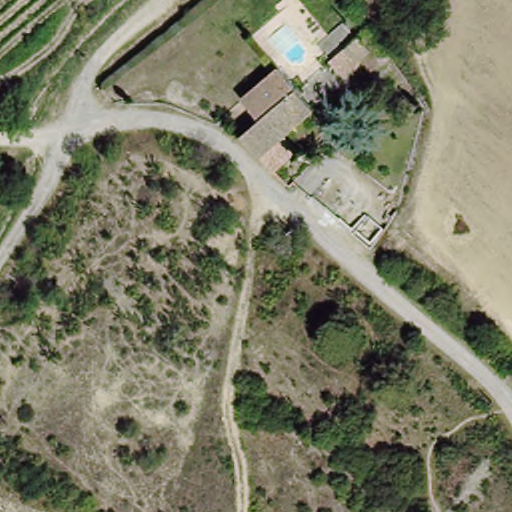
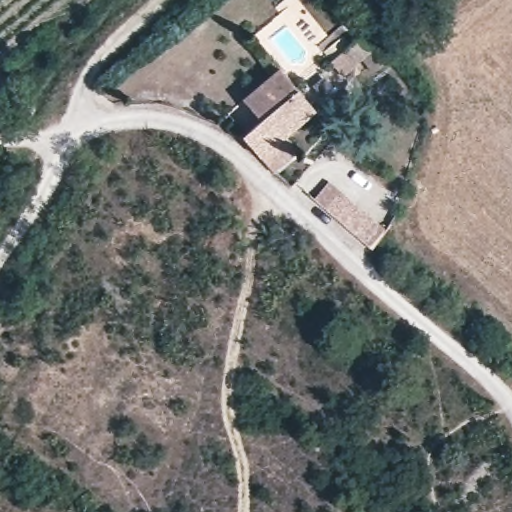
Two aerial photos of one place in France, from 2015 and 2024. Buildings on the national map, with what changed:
unchanged [(383,48),(368,62),(352,44),(368,31),(383,48)]
unchanged [(259,121),(240,98),(277,68),(312,116),(288,137),(298,154),(278,174),(265,157),(242,135),(259,121)]
new [(386,230),(370,251),(313,198),(329,180),(386,230)]
demolished [(390,235),(374,254),(353,236),(371,219),(390,235)]

